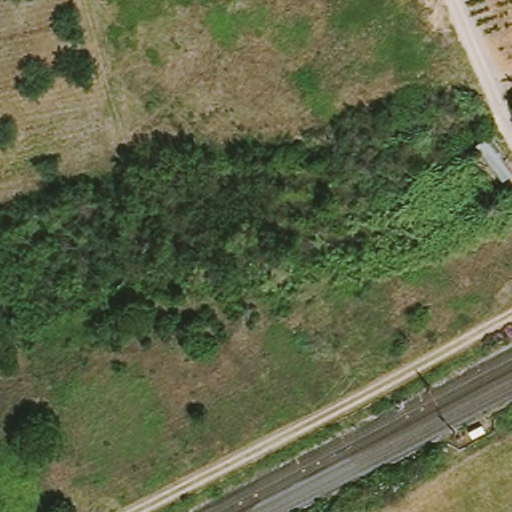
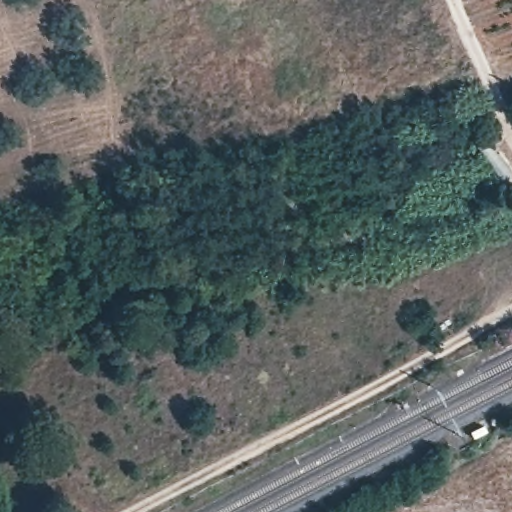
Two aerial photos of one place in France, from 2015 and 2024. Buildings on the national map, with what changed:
[]

